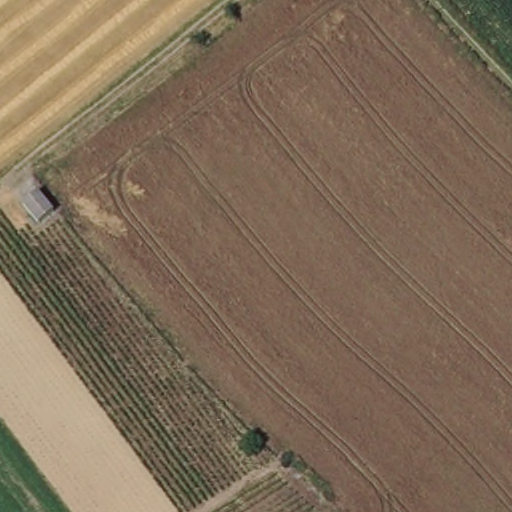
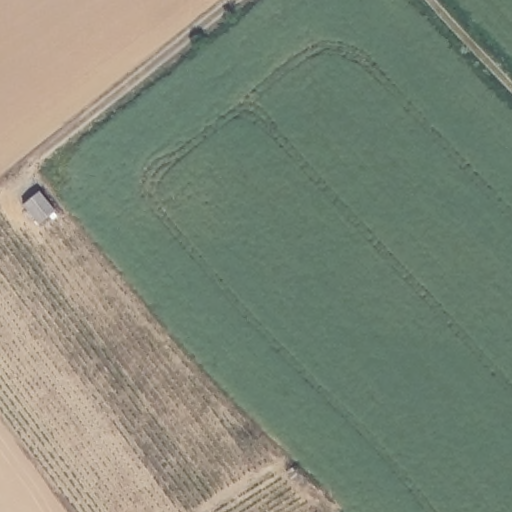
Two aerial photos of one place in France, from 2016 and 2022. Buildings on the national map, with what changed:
unchanged [(52,212),(37,225),(21,205),(36,192),(52,212)]

